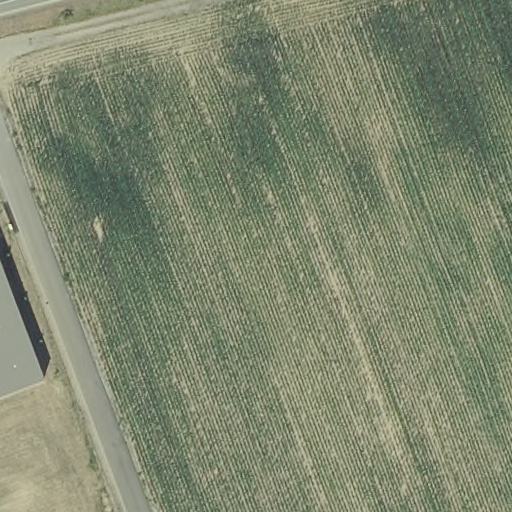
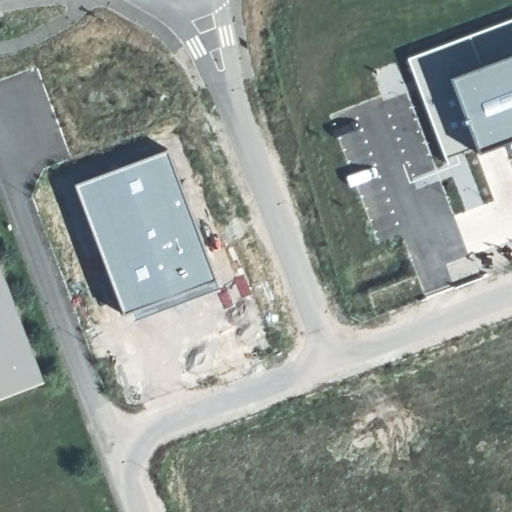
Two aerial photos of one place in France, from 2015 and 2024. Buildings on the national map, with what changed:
new [(512,17),(512,138),(445,161),(406,57),(512,17)]
new [(166,148),(202,240),(217,282),(123,315),(74,183),(166,148)]
unchanged [(0,395),(0,261),(44,379),(0,395)]

